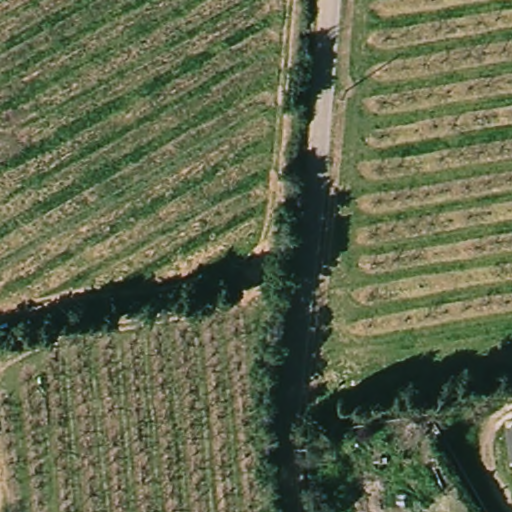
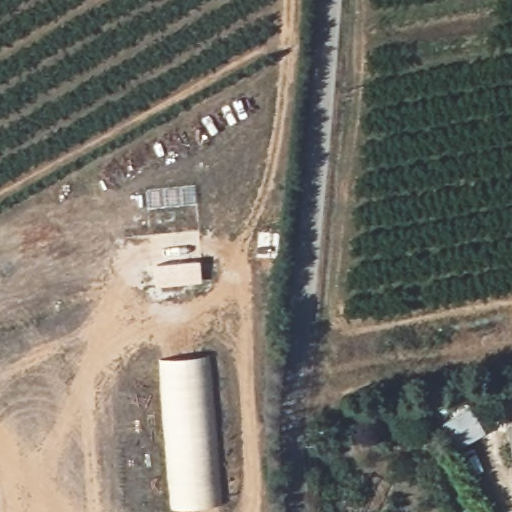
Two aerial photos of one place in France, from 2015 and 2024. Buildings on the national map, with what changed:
new [(161,360),(208,356),(221,506),(173,511),(161,360)]
unchanged [(512,421),(512,462),(510,463),(502,423),(512,421)]
unchanged [(512,462),(512,472),(510,463),(512,462)]

